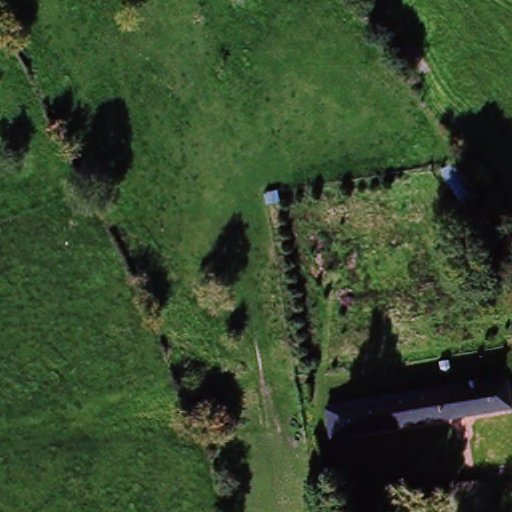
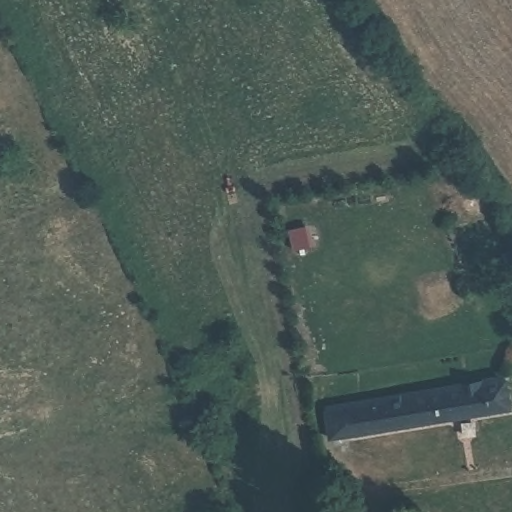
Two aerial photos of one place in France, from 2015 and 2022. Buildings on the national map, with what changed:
unchanged [(505,376),(510,404),(347,432),(332,435),(327,407),(342,405),(505,376)]

